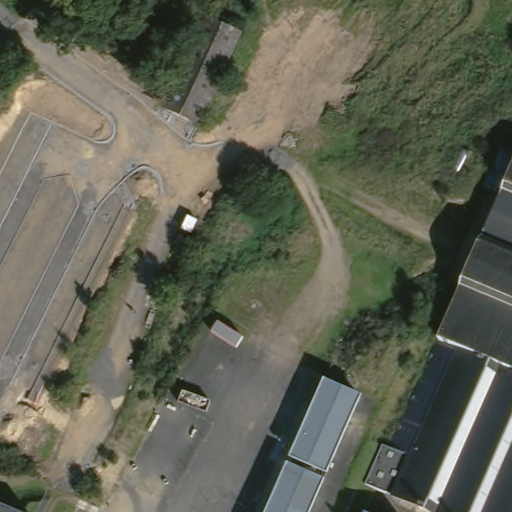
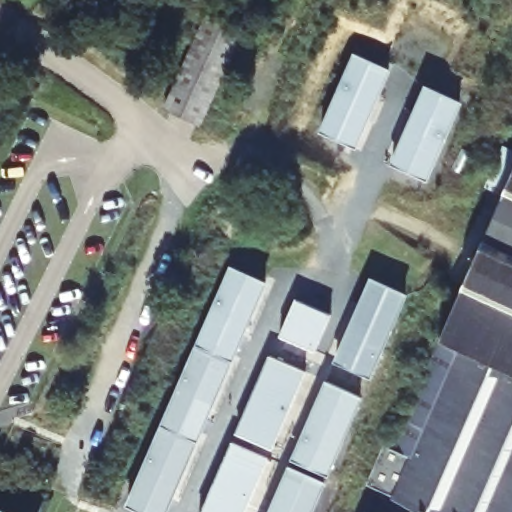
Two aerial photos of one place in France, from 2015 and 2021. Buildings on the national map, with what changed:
unchanged [(243,35),(201,124),(164,106),(206,17),(243,35)]
new [(353,57),(388,71),(357,147),(323,134),(353,57)]
new [(426,86),(461,100),(430,176),(395,162),(426,86)]
unchanged [(498,149),(512,155),(512,271),(501,266),(475,254),(501,197),(481,188),(498,149)]
unchanged [(417,512),(358,486),(375,449),(385,453),(475,254),(501,266),(512,271),(512,512),(417,512)]
new [(267,283),(166,512),(143,512),(127,505),(230,266),(267,283)]
new [(362,277),(397,291),(364,372),(329,358),(362,277)]
new [(287,298),(323,313),(308,348),(272,334),(287,298)]
new [(263,355),(300,370),(268,445),(232,430),(263,355)]
unchanged [(325,380),(362,396),(329,474),(292,459),(325,380)]
new [(265,454),(241,512),(199,512),(229,439),(265,454)]
unchanged [(326,480),(312,512),(267,512),(287,465),(326,480)]
unchanged [(0,512),(0,508),(8,512),(0,512)]

